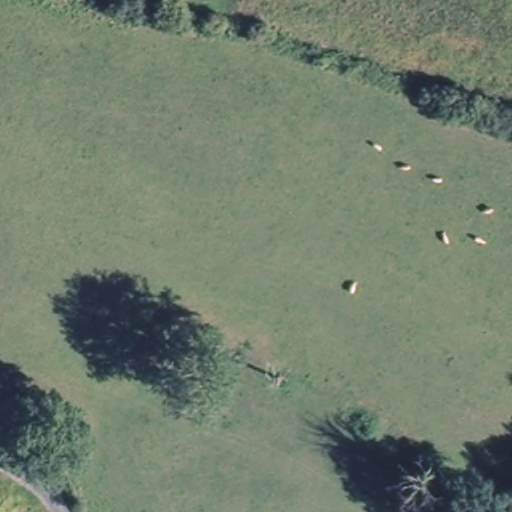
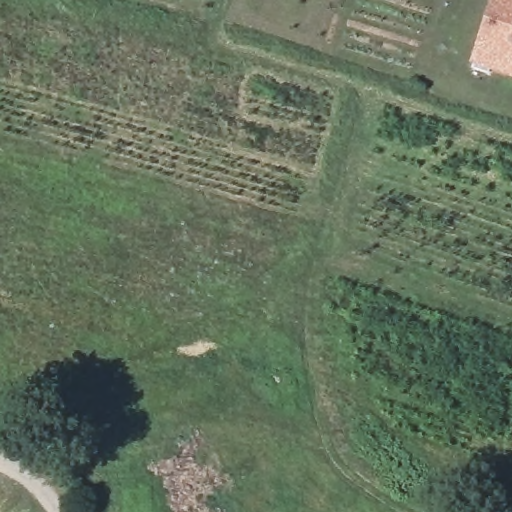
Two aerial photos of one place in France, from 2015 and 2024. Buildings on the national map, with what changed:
new [(492,0),(512,0),(512,78),(470,64),(492,0)]

